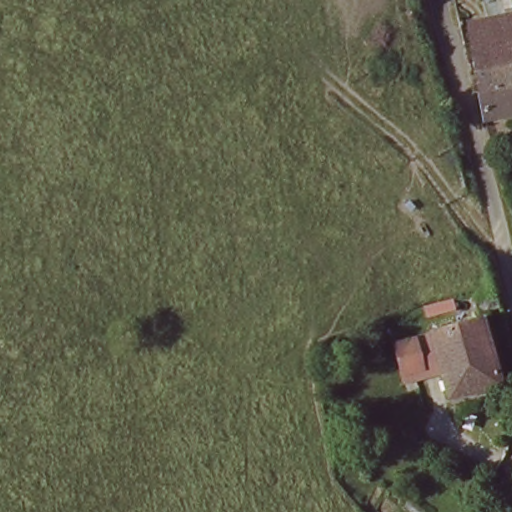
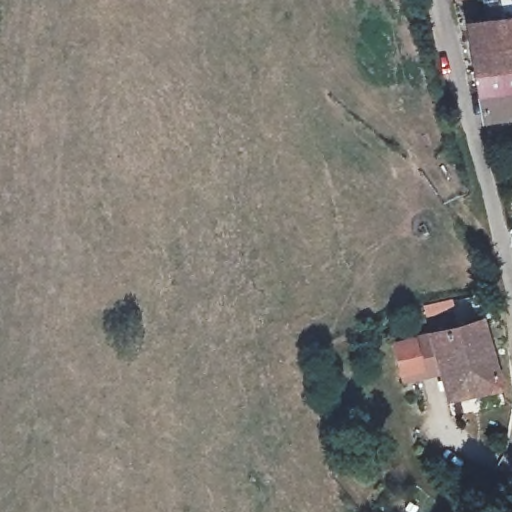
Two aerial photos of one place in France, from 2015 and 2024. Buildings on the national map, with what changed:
unchanged [(472,51),(465,50),(460,24),(456,0),(482,0),(487,21),(512,16),(512,62),(475,70),(472,51)]
unchanged [(512,62),(512,87),(481,94),(475,70),(512,62)]
unchanged [(486,125),(487,124),(481,94),(512,87),(512,118),(486,125)]
unchanged [(465,294),(495,286),(502,315),(482,320),(499,386),(448,400),(428,331),(421,306),(465,294)]
unchanged [(397,367),(393,349),(390,339),(408,335),(415,366),(399,371),(397,367)]

